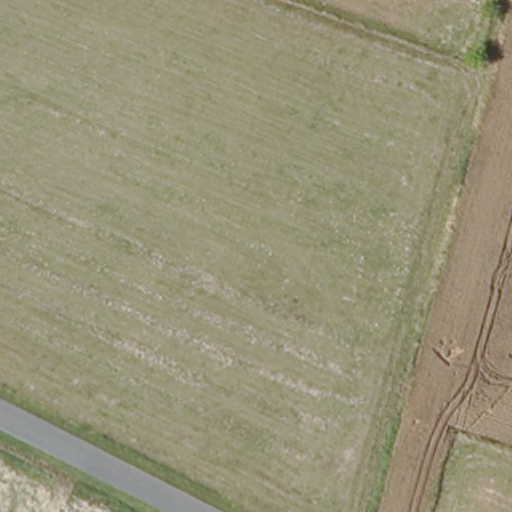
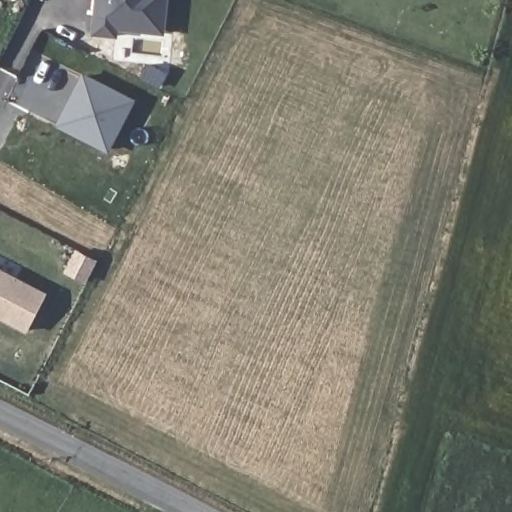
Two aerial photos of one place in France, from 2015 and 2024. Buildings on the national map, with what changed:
new [(166,0),(164,33),(117,28),(116,36),(94,34),(97,0),(162,0),(166,0)]
new [(136,100),(110,152),(55,125),(82,72),(136,100)]
new [(47,292),(26,333),(0,320),(0,267),(47,292)]

